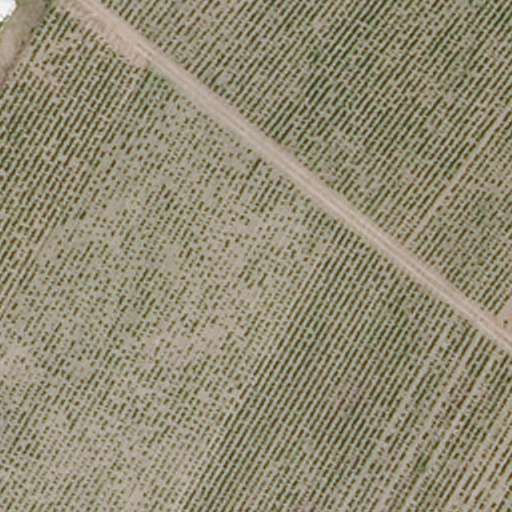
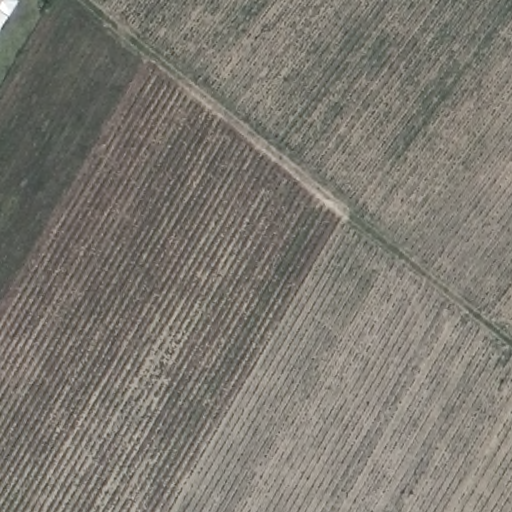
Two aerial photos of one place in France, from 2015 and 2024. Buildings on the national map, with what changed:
[]

